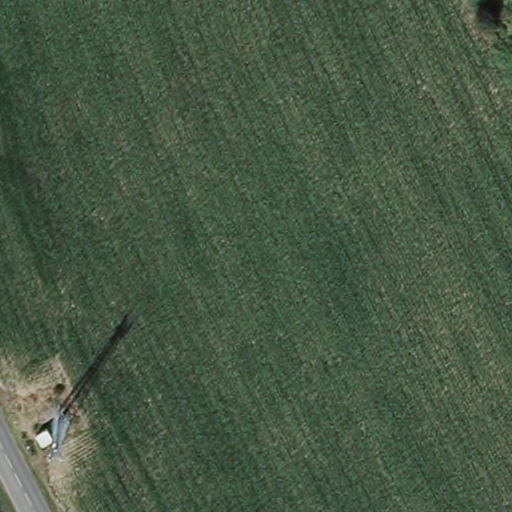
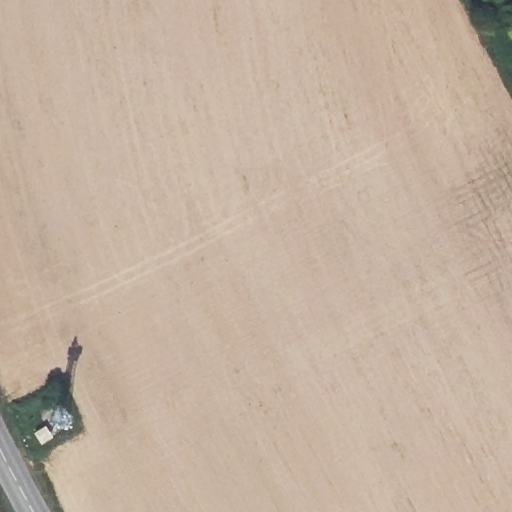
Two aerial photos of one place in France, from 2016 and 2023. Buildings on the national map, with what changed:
unchanged [(40,420),(45,431),(34,437),(29,426),(40,420)]

